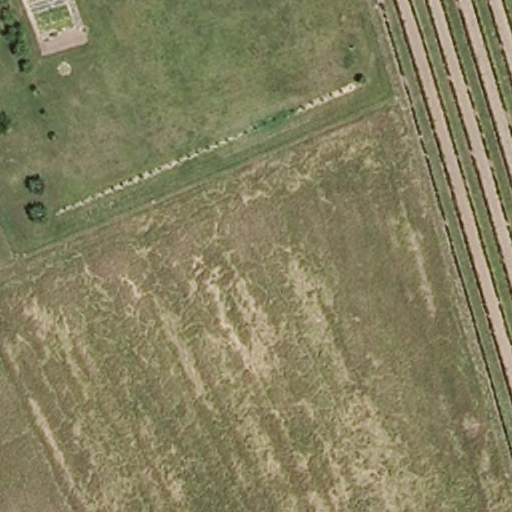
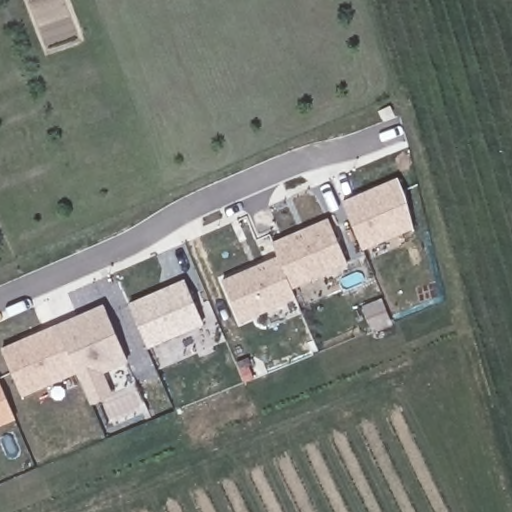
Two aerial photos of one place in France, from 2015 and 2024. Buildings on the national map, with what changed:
new [(398,177),(407,199),(413,227),(363,249),(341,200),(398,177)]
new [(328,218),(347,262),(291,286),(278,256),(271,242),(328,218)]
new [(278,256),(291,286),(295,296),(238,321),(221,280),(278,256)]
new [(185,280),(203,321),(147,346),(130,303),(185,280)]
new [(102,305),(126,361),(101,371),(111,395),(89,403),(56,325),(102,305)]
new [(54,325),(74,371),(19,395),(0,351),(0,349),(54,325)]
new [(14,416),(0,423),(0,382),(14,416)]

